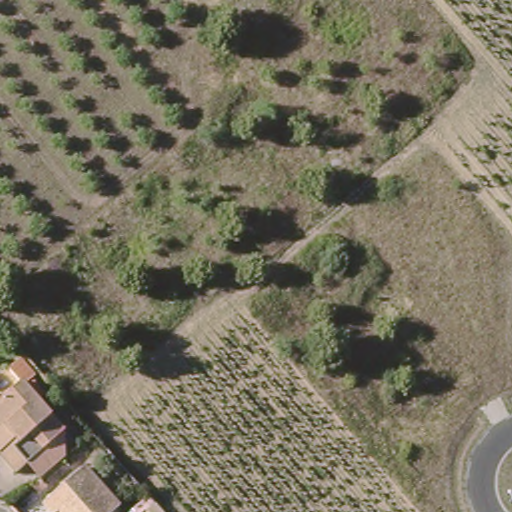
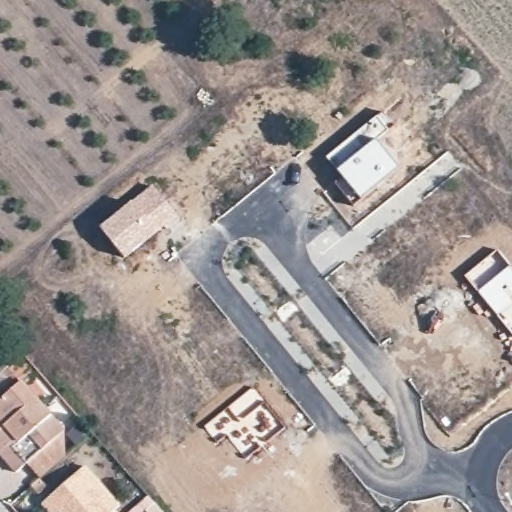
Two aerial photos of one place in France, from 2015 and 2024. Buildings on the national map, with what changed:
new [(382,112),(392,125),(376,140),(336,171),(325,157),(382,112)]
new [(376,140),(398,169),(360,200),(336,171),(376,140)]
new [(180,220),(167,231),(165,227),(158,234),(126,260),(100,228),(132,202),(153,186),(180,220)]
new [(512,333),(465,277),(497,250),(512,268),(512,333)]
unchanged [(29,461),(18,470),(0,447),(0,396),(4,400),(29,382),(69,430),(45,449),(37,438),(32,432),(15,447),(29,461)]
new [(285,428),(246,460),(227,436),(217,443),(205,427),(253,388),(285,428)]
unchanged [(46,512),(38,502),(79,469),(85,475),(113,507),(107,512),(46,512)]

